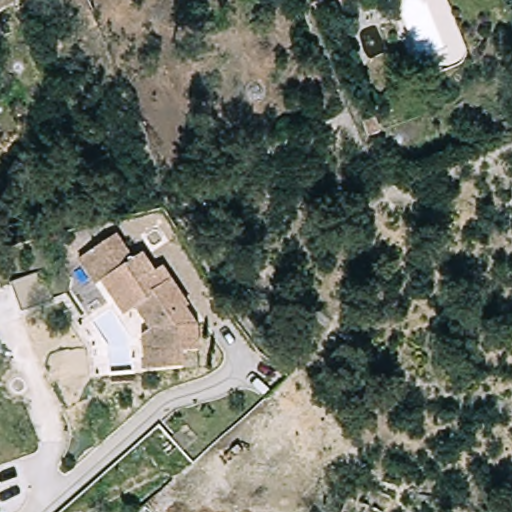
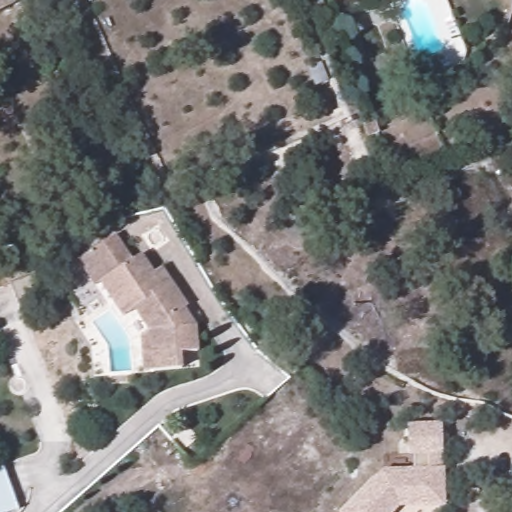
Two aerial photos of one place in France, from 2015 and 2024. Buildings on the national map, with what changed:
unchanged [(0,9),(0,0),(11,0),(12,2),(0,9)]
unchanged [(358,0),(360,0),(358,1),(358,0)]
unchanged [(135,337),(144,333),(129,312),(118,320),(89,289),(95,285),(73,263),(112,236),(129,261),(138,255),(150,274),(158,268),(184,308),(180,310),(193,327),(194,353),(178,354),(180,371),(138,375),(135,337)]
new [(441,455),(440,466),(445,465),(445,505),(398,507),(394,512),(340,512),(381,469),(413,468),(413,455),(407,455),(408,423),(442,422),(441,455)]
demolished [(174,440),(190,426),(202,439),(185,454),(174,440)]
new [(14,507),(0,512),(0,466),(14,507)]
demolished [(351,498),(371,508),(370,512),(345,512),(351,498)]

